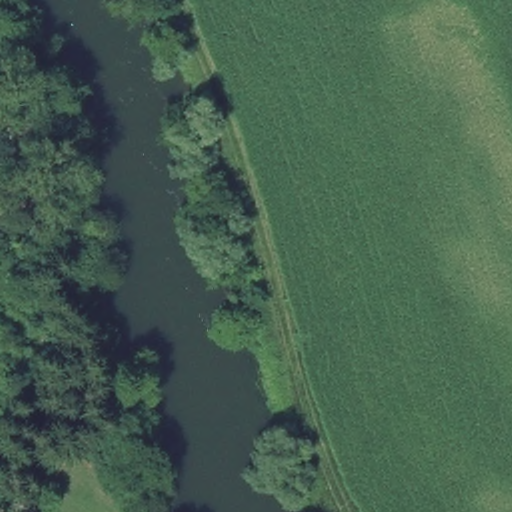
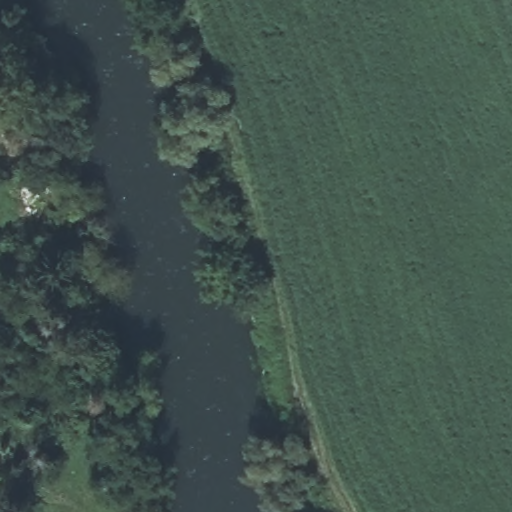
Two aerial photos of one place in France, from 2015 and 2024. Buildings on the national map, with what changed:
[]

